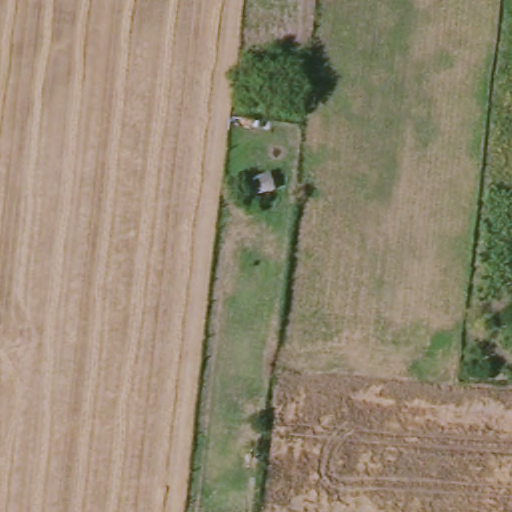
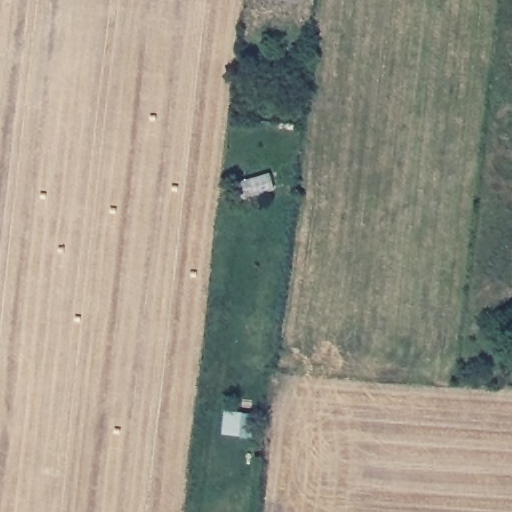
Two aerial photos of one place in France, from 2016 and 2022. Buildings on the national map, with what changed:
unchanged [(266,172),(271,190),(241,200),(234,182),(266,172)]

